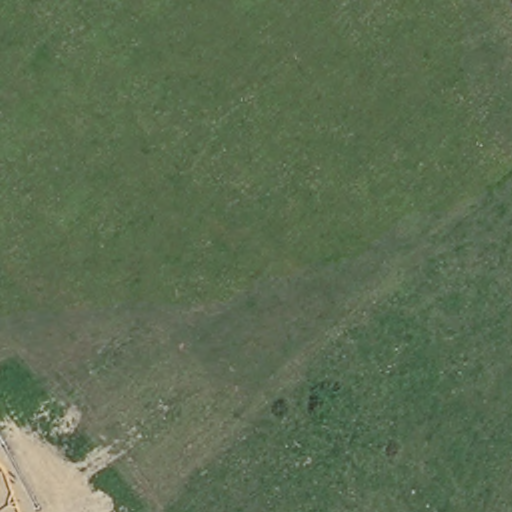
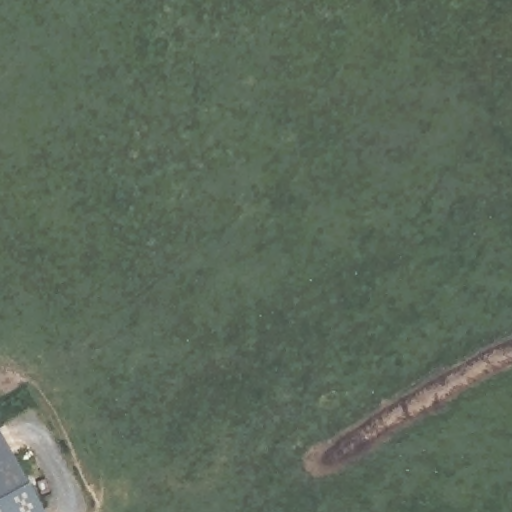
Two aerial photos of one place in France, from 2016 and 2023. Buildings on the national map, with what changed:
new [(38,512),(0,512),(0,441),(38,512)]

